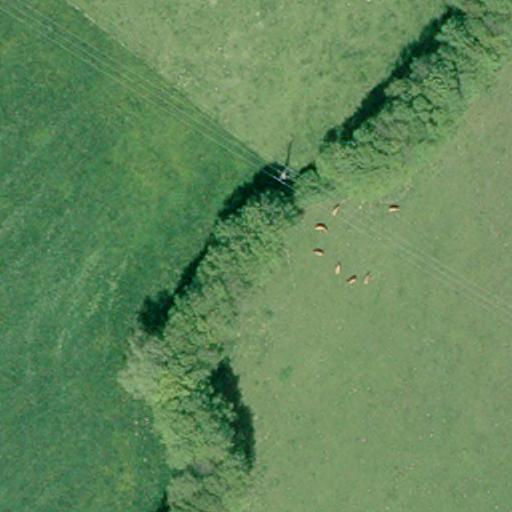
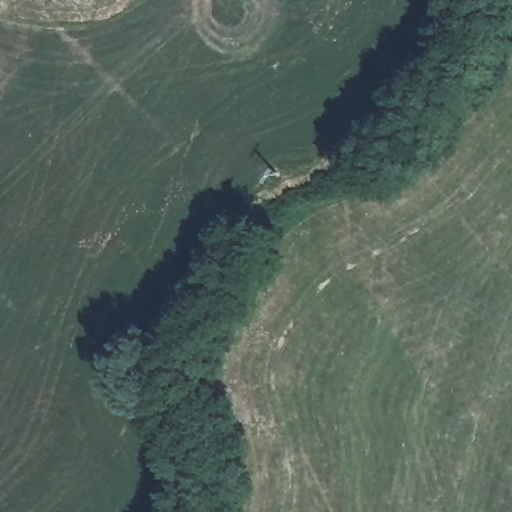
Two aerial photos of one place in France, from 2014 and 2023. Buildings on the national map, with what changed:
[]

